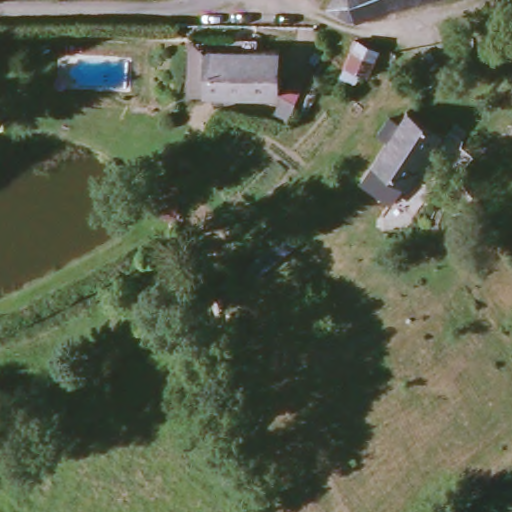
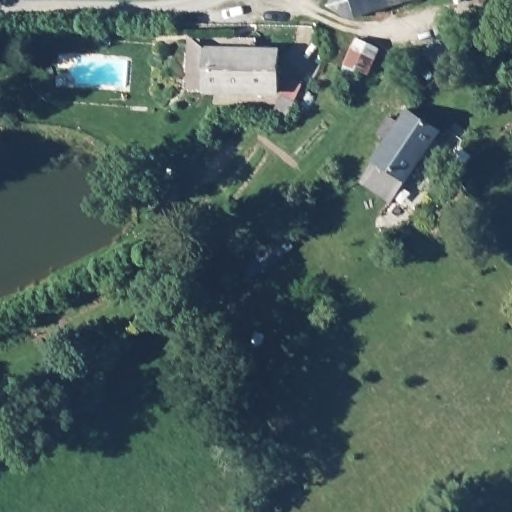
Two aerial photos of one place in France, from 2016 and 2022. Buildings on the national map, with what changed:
unchanged [(351,22),(329,11),(336,0),(384,0),(387,10),(351,22)]
unchanged [(387,10),(384,0),(419,0),(387,10)]
unchanged [(512,16),(512,25),(509,24),(512,16)]
unchanged [(270,95),(220,93),(199,92),(182,91),(185,35),(202,45),(273,48),(270,95)]
unchanged [(378,45),(368,71),(345,62),(354,35),(378,45)]
unchanged [(435,127),(392,198),(359,179),(369,161),(382,137),(376,133),(383,120),(394,126),(403,108),(435,127)]
unchanged [(173,185),(170,210),(154,210),(157,185),(173,185)]

